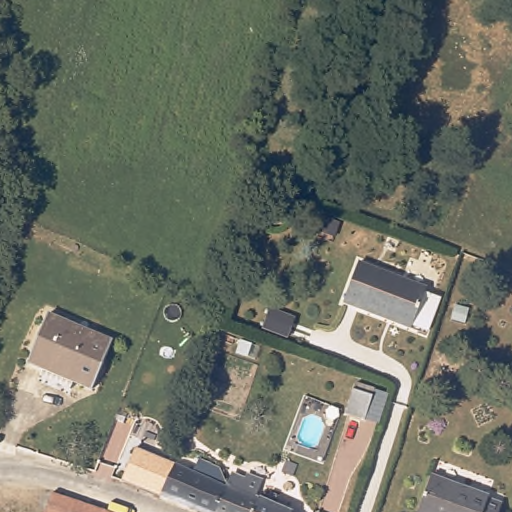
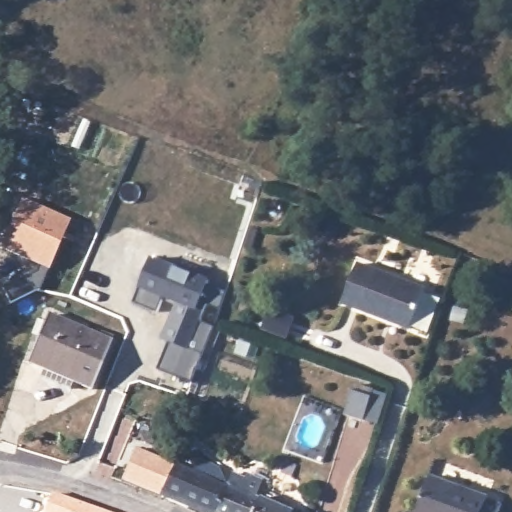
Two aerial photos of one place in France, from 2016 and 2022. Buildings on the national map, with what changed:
new [(4,288),(36,272),(39,266),(1,250),(22,200),(70,220),(40,290),(11,303),(4,288)]
new [(170,342),(162,339),(177,302),(163,296),(157,311),(135,303),(141,287),(153,256),(210,278),(207,285),(227,292),(220,310),(207,304),(201,321),(215,327),(192,382),(159,370),(170,342)]
unchanged [(422,328),(407,322),(406,325),(340,299),(354,260),(420,284),(419,287),(434,293),(422,328)]
unchanged [(53,317),(114,345),(94,390),(77,383),(75,390),(47,377),(49,370),(34,362),(53,317)]
unchanged [(375,397),(368,421),(348,415),(356,391),(375,397)]
unchanged [(136,484),(117,475),(130,443),(149,451),(168,460),(155,492),(136,484)]
unchanged [(172,461),(177,456),(183,457),(186,461),(185,467),(219,483),(208,512),(201,512),(155,492),(168,460),(172,461)]
unchanged [(488,495),(487,497),(501,503),(498,512),(419,512),(433,474),(488,495)]
unchanged [(221,480),(237,487),(241,476),(254,480),(250,493),(286,510),(292,512),(208,512),(219,483),(221,480)]
unchanged [(51,490),(60,491),(117,512),(45,512),(45,510),(51,490)]

